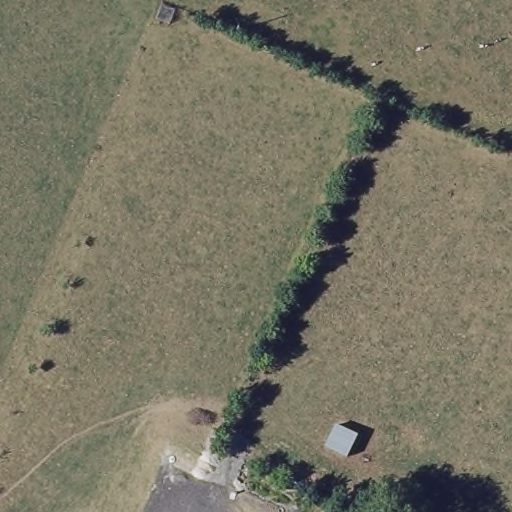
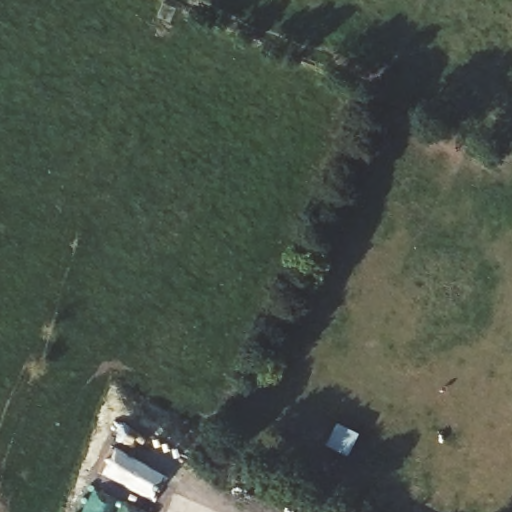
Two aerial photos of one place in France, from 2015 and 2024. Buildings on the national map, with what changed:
[]

